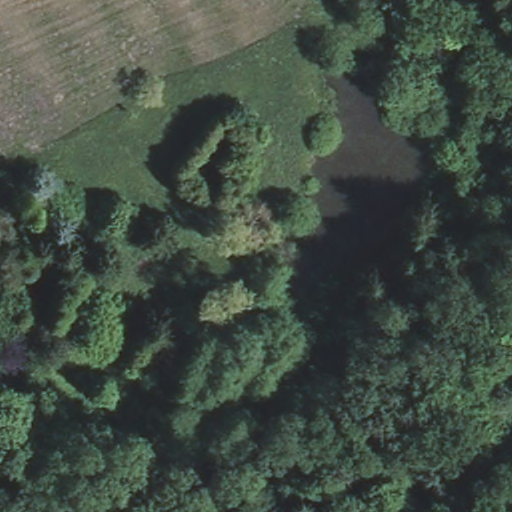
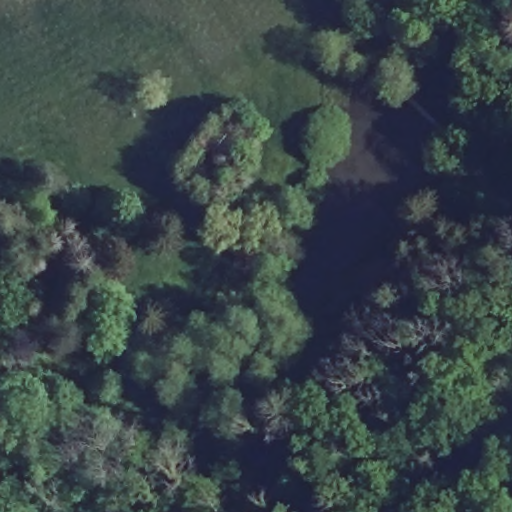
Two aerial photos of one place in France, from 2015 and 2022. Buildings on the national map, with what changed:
unchanged [(180,361),(166,377),(141,357),(154,341),(180,361)]

